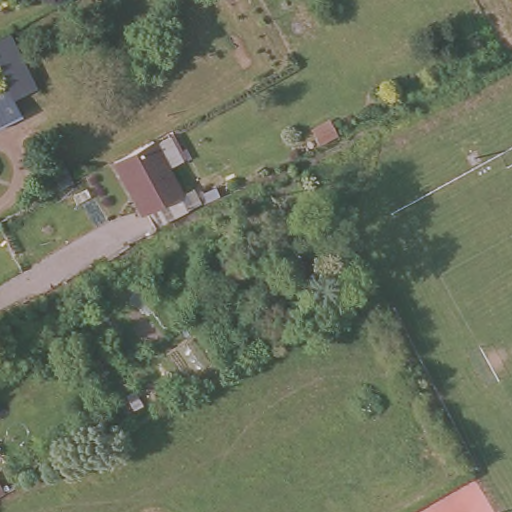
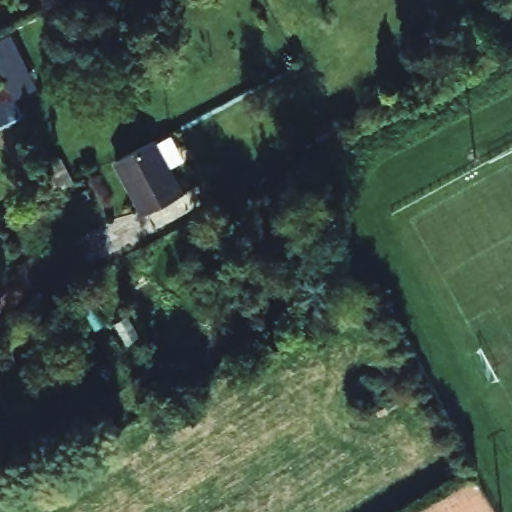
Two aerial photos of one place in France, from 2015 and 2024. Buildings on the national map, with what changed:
unchanged [(0,69),(0,39),(13,33),(38,87),(15,98),(24,118),(0,132),(0,86),(6,82),(0,69)]
unchanged [(175,195),(180,206),(151,220),(115,155),(152,137),(181,191),(175,195)]

